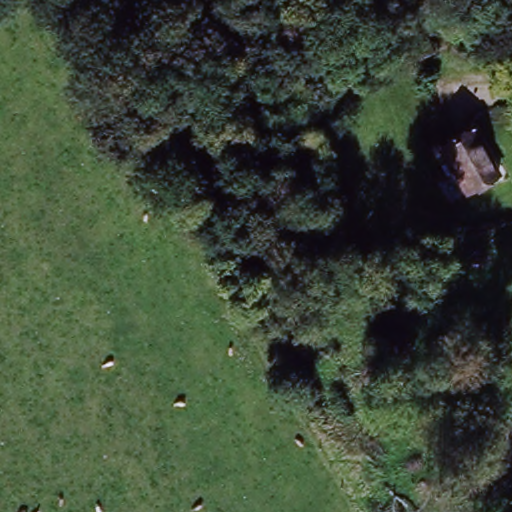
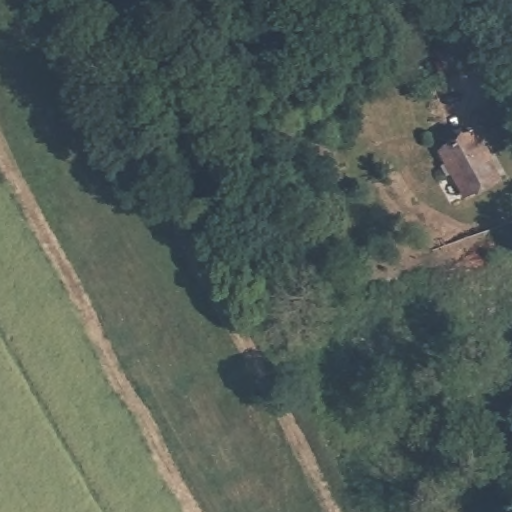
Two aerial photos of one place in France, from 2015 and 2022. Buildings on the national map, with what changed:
unchanged [(433,61),(411,69),(404,51),(425,43),(433,61)]
unchanged [(494,181),(463,196),(446,162),(442,153),(446,151),(474,137),(494,181)]

